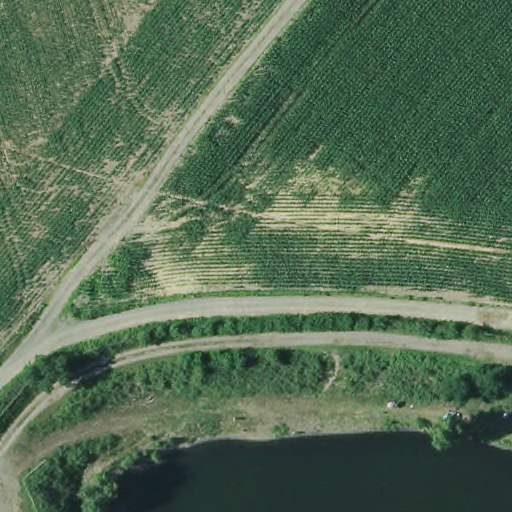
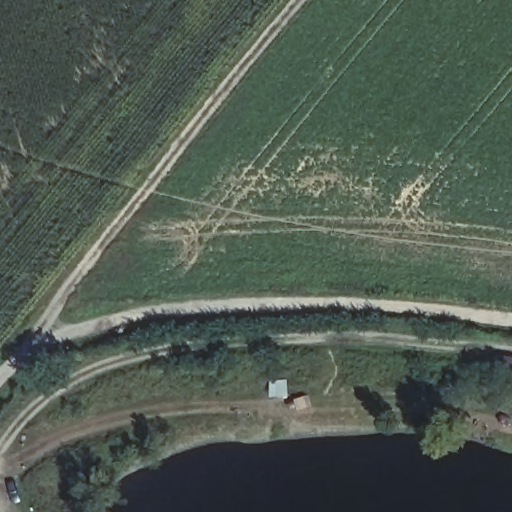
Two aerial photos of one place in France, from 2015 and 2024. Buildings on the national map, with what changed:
[]

